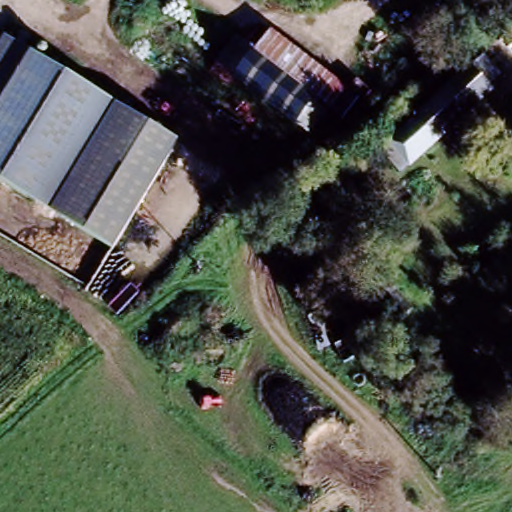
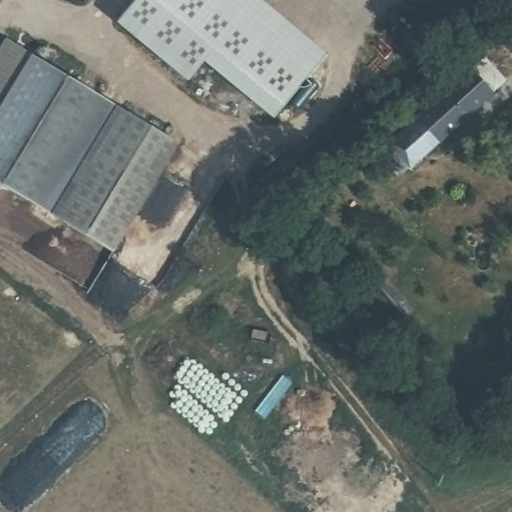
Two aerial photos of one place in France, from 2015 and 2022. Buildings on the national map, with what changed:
new [(136,0),(262,0),(327,53),(273,118),(204,61),(188,82),(116,22),(136,0)]
unchanged [(118,250),(0,183),(0,54),(11,37),(179,139),(118,250)]
demolished [(293,122),(243,82),(266,56),(316,96),(293,122)]
unchanged [(477,58),(501,83),(411,169),(389,144),(477,58)]
unchanged [(361,284),(376,269),(407,300),(393,315),(361,284)]

